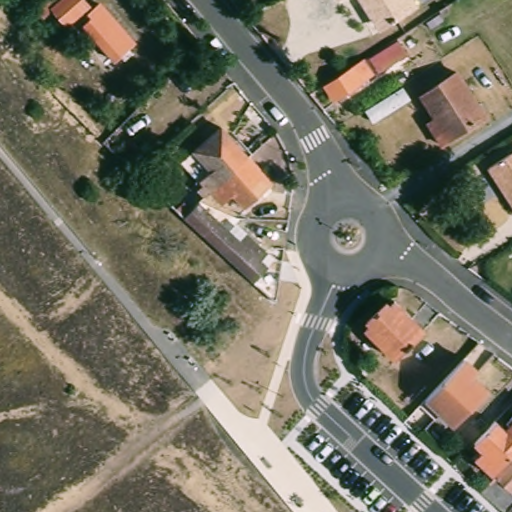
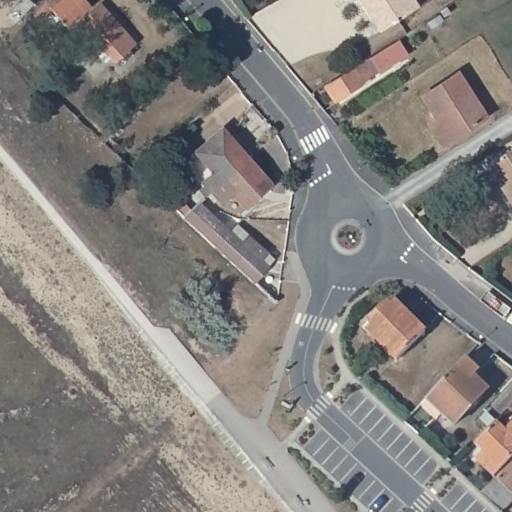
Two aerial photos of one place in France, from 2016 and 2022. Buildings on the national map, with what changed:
unchanged [(72,24),(51,0),(86,0),(92,6),(72,24)]
unchanged [(415,0),(416,1),(394,16),(378,26),(369,13),(361,0),(415,0)]
unchanged [(448,7),(452,14),(446,17),(442,11),(448,7)]
unchanged [(138,42),(118,59),(97,35),(91,41),(81,30),(88,25),(107,8),(138,42)]
unchanged [(403,56),(375,74),(367,60),(395,42),(403,56)]
unchanged [(348,68),(361,60),(370,75),(331,99),(323,87),(350,71),(348,68)]
unchanged [(460,68),(487,111),(443,139),(430,119),(439,113),(423,91),(460,68)]
unchanged [(205,180),(182,156),(221,123),(247,151),(271,178),(245,201),(234,189),(224,199),(222,197),(210,185),(205,190),(200,185),(205,180)]
unchanged [(512,209),(486,168),(512,152),(512,209)]
unchanged [(238,242),(232,237),(222,247),(188,217),(202,201),(242,238),(238,242)]
unchanged [(267,261),(254,276),(222,247),(232,237),(238,242),(242,238),(249,230),(268,248),(275,254),(267,261)]
unchanged [(365,321),(383,302),(387,306),(392,301),(422,330),(394,359),(363,329),(368,324),(365,321)]
unchanged [(461,357),(474,370),(470,375),(485,389),(451,425),(438,412),(433,417),(417,403),(422,397),(461,357)]
unchanged [(512,412),(512,422),(507,418),(512,412)]
unchanged [(512,455),(493,476),(474,459),(481,451),(472,443),(494,419),(505,430),(512,422),(512,455)]
unchanged [(512,492),(512,498),(502,509),(481,489),(493,476),(496,478),(512,460),(512,489),(511,491),(512,492)]
unchanged [(512,509),(512,512),(506,512),(510,508),(512,509)]

